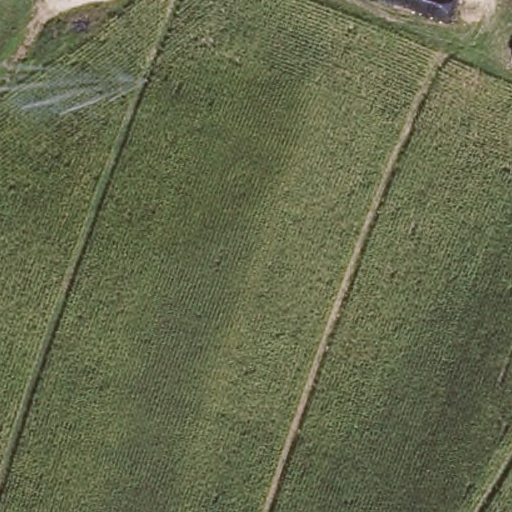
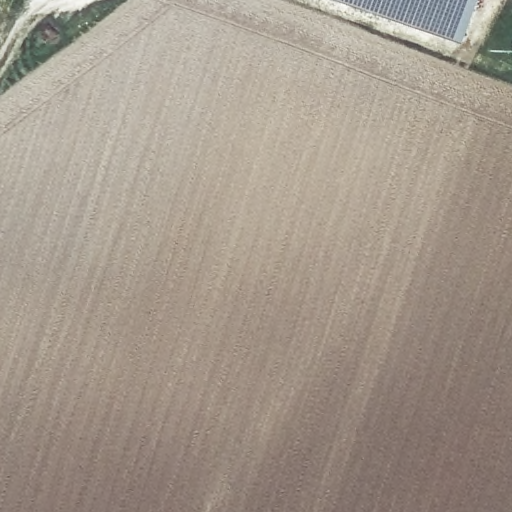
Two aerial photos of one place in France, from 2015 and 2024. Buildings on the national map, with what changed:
new [(473,0),(460,37),(352,0),(473,0)]

